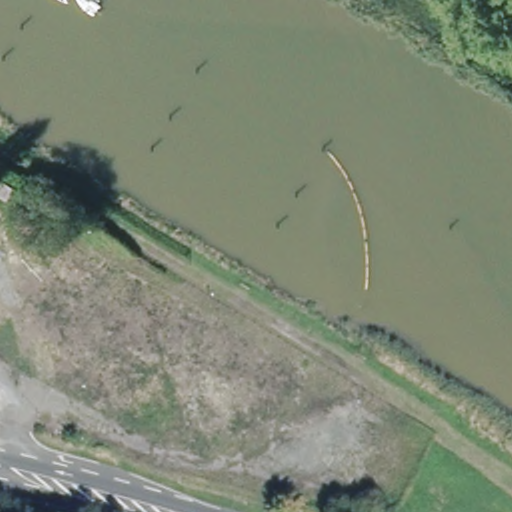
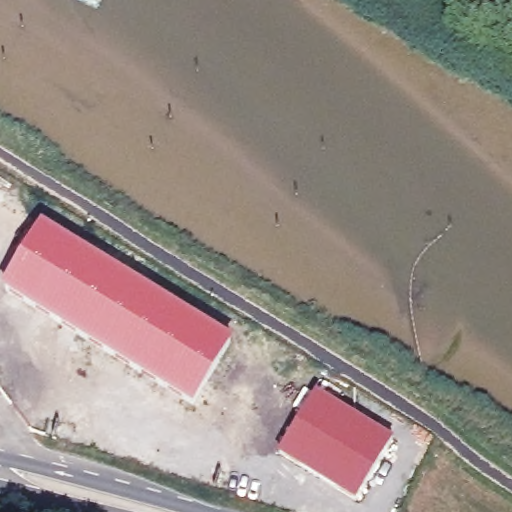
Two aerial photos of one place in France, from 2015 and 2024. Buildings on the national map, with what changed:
new [(42,222),(209,323),(235,342),(195,407),(135,373),(20,301),(1,288),(42,222)]
new [(301,413),(293,407),(305,388),(338,405),(394,440),(355,502),(276,452),(301,413)]

